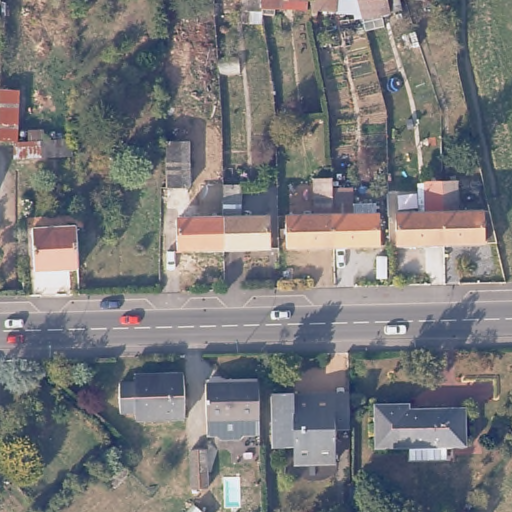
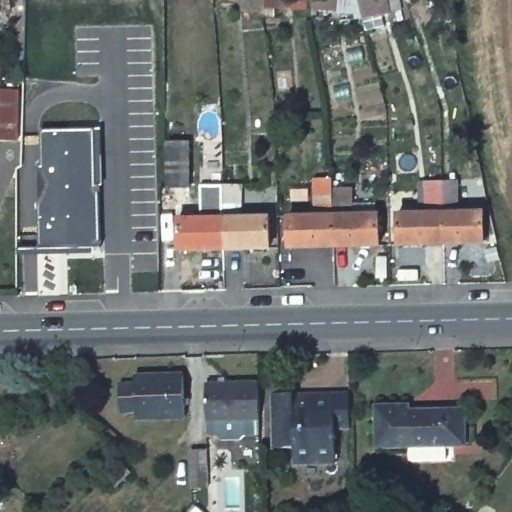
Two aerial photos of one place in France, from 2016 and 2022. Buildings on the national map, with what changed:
unchanged [(354,0),(389,0),(390,11),(360,12),(345,17),(340,6),(354,0)]
new [(18,89),(19,140),(0,140),(0,88),(18,89)]
new [(43,166),(41,129),(102,127),(104,185),(99,185),(100,247),(91,247),(92,252),(18,255),(17,247),(40,246),(36,166),(43,166)]
demolished [(78,160),(75,161),(23,162),(21,142),(76,141),(78,160)]
unchanged [(194,186),(171,188),(169,144),(191,142),(194,186)]
unchanged [(441,245),(396,245),(395,206),(420,204),(418,167),(437,167),(441,245)]
unchanged [(437,167),(453,167),(455,203),(483,202),(496,244),(441,245),(437,167)]
unchanged [(342,247),(297,247),(295,216),(317,214),(316,184),(340,182),(340,190),(342,247)]
unchanged [(340,190),(363,187),(365,202),(379,202),(380,246),(342,247),(340,190)]
unchanged [(230,196),(230,192),(250,192),(251,213),(273,212),(275,247),(231,250),(230,196)]
unchanged [(185,252),(183,214),(196,212),(196,197),(230,196),(231,250),(185,252)]
demolished [(80,227),(82,263),(79,264),(41,265),(41,229),(77,227),(80,227)]
unchanged [(265,412),(265,428),(248,429),(245,433),(226,434),(222,430),(212,431),(211,415),(210,368),(264,368),(265,412)]
unchanged [(181,417),(135,418),(135,408),(116,409),(115,380),(134,379),(134,373),(179,371),(181,417)]
unchanged [(288,464),(287,448),(271,449),(270,392),(288,392),(288,403),(304,403),(304,395),(330,395),(345,395),(345,428),(330,428),(331,462),(288,464)]
unchanged [(405,404),(468,405),(467,444),(445,443),(445,457),(407,457),(407,443),(375,444),(376,398),(405,398),(405,404)]
unchanged [(214,486),(197,487),(196,455),(212,454),(214,486)]

